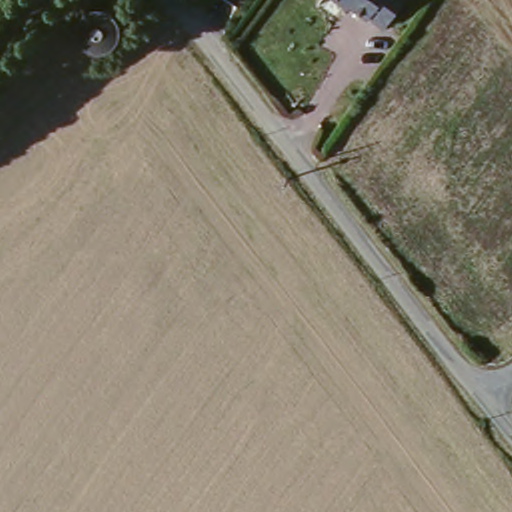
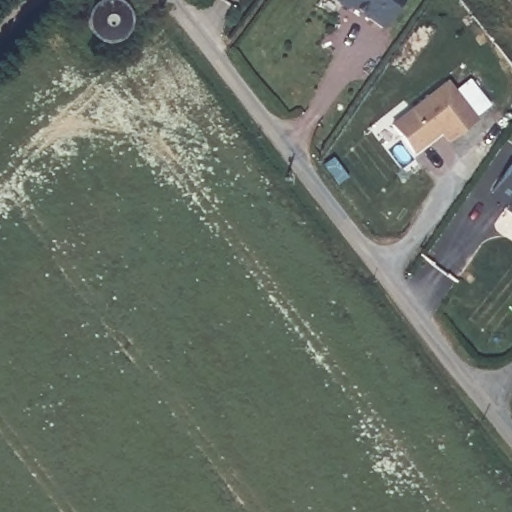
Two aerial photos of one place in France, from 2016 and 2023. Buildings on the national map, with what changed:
unchanged [(347,4),(341,0),(406,0),(387,28),(349,1),(347,4)]
new [(456,91),(472,79),(491,107),(479,115),(482,120),(449,144),(443,135),(413,155),(389,125),(449,81),(456,91)]
new [(512,217),(505,213),(510,207),(492,194),(512,165),(512,217)]

